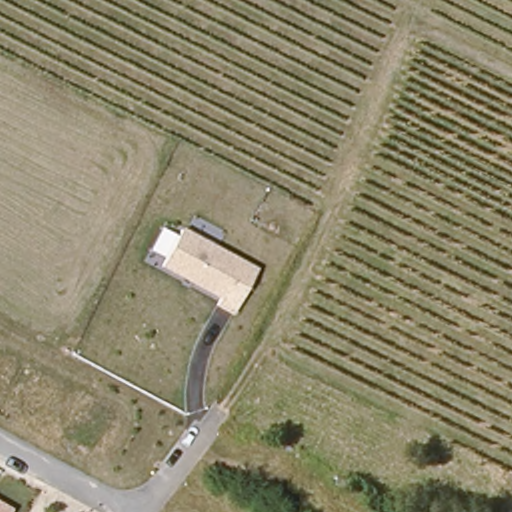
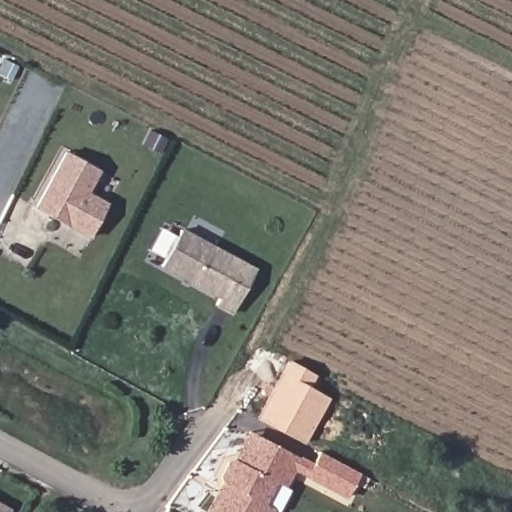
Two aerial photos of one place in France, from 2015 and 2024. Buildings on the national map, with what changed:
new [(89,191),(107,200),(89,238),(32,208),(64,150),(100,170),(89,191)]
unchanged [(230,317),(212,308),(217,297),(158,268),(178,230),(256,268),(230,317)]
new [(307,444),(257,418),(289,360),(317,375),(309,386),(332,398),(307,444)]
new [(230,462),(236,460),(251,431),(258,435),(301,456),(286,485),(276,480),(263,503),(273,509),(272,512),(209,512),(224,483),(222,476),(230,462)]
new [(320,451),(361,472),(348,498),(306,477),(320,451)]
unchanged [(9,512),(0,512),(0,503),(11,509),(9,512)]

